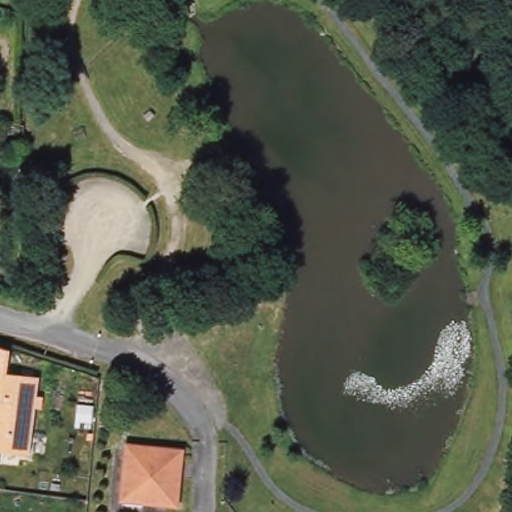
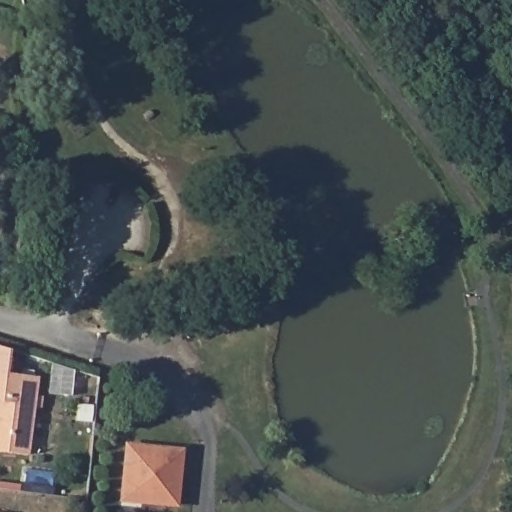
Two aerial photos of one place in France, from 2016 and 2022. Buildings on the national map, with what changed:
unchanged [(39,377),(30,453),(0,450),(0,345),(10,348),(7,370),(39,377)]
unchanged [(155,503),(126,500),(131,445),(186,450),(185,466),(181,505),(155,503)]

